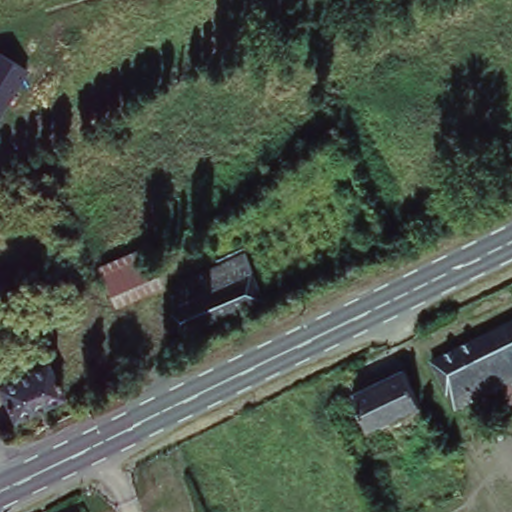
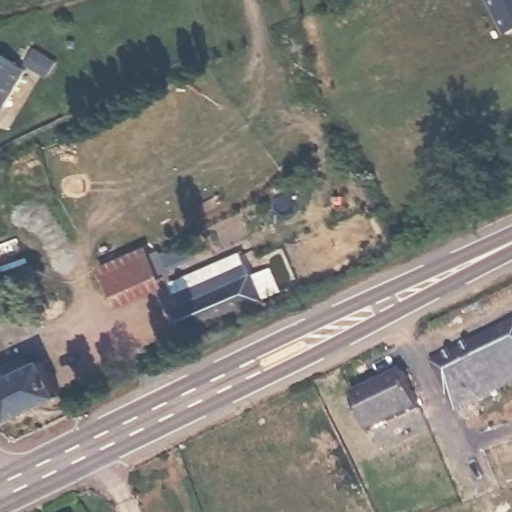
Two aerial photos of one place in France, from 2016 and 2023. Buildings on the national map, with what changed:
new [(490,0),(512,0),(512,27),(505,31),(490,0)]
unchanged [(0,112),(0,51),(27,70),(0,112)]
unchanged [(182,324),(196,316),(178,277),(217,258),(213,252),(243,240),(265,295),(200,325),(203,331),(188,337),(182,324)]
unchanged [(100,260),(145,241),(150,251),(161,279),(117,297),(104,267),(100,260)]
unchanged [(3,272),(11,296),(0,299),(0,273),(3,272)]
unchanged [(435,351),(512,316),(512,371),(455,399),(435,351)]
unchanged [(9,366),(40,352),(42,358),(55,352),(70,391),(0,426),(0,332),(9,366)]
unchanged [(406,375),(419,407),(369,430),(355,398),(406,375)]

